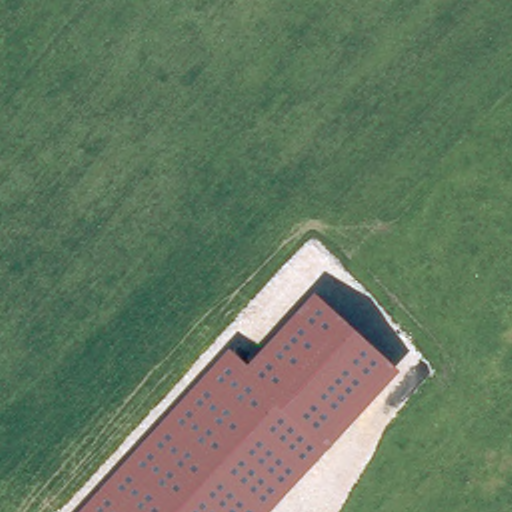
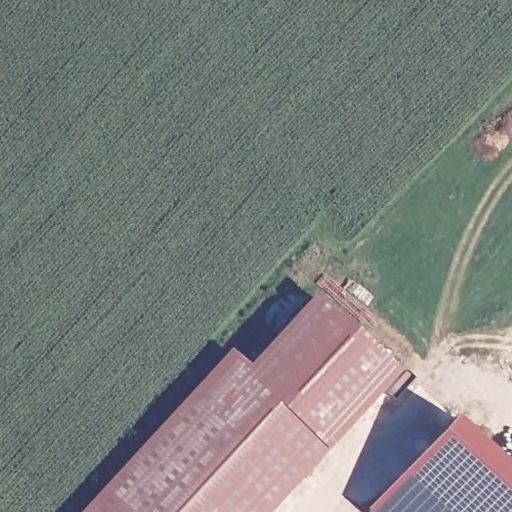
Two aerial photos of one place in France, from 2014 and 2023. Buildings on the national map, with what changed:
unchanged [(230,348),(245,364),(313,291),(399,370),(268,512),(78,512),(230,348)]
new [(441,418),(512,483),(512,512),(356,512),(441,418)]

